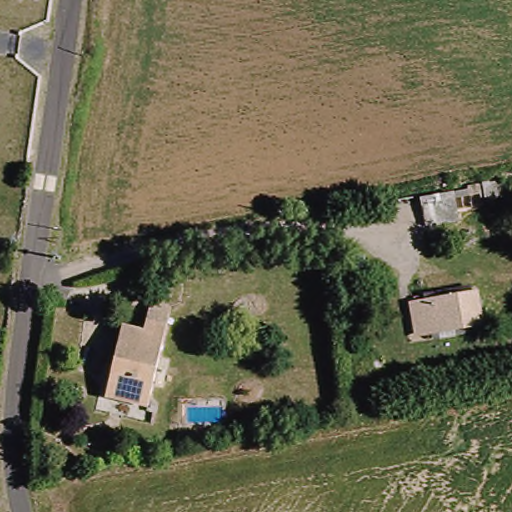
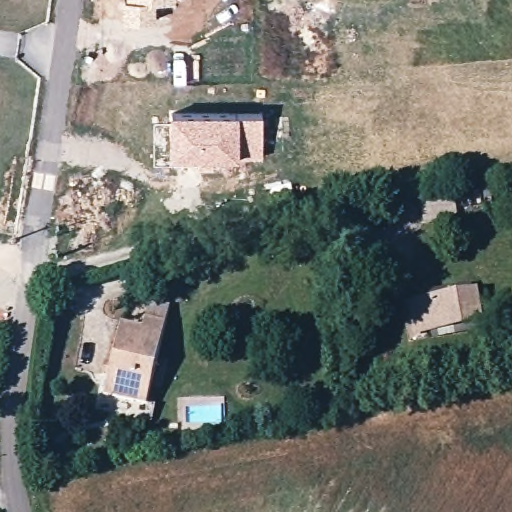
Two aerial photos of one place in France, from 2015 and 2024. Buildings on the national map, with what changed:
new [(156,1),(156,21),(123,21),(124,0),(175,0),(175,2),(156,1)]
new [(263,111),(263,157),(209,159),(169,158),(169,111),(263,111)]
unchanged [(457,220),(427,225),(422,199),(453,194),(457,220)]
unchanged [(411,304),(472,294),(477,323),(416,334),(411,304)]
unchanged [(118,323),(139,328),(141,318),(163,324),(160,334),(144,404),(101,393),(118,323)]

